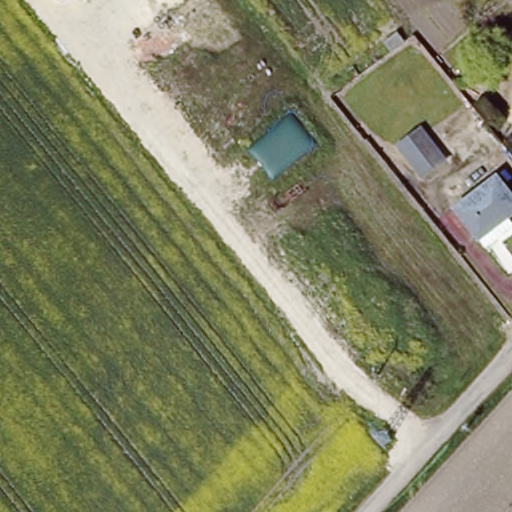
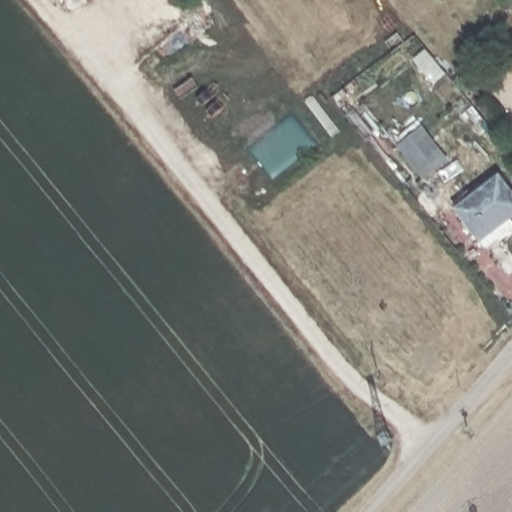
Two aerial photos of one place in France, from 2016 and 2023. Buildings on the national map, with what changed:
unchanged [(445,161),(421,178),(396,145),(418,128),(445,161)]
unchanged [(512,191),(512,217),(478,244),(452,210),(499,175),(512,191)]

